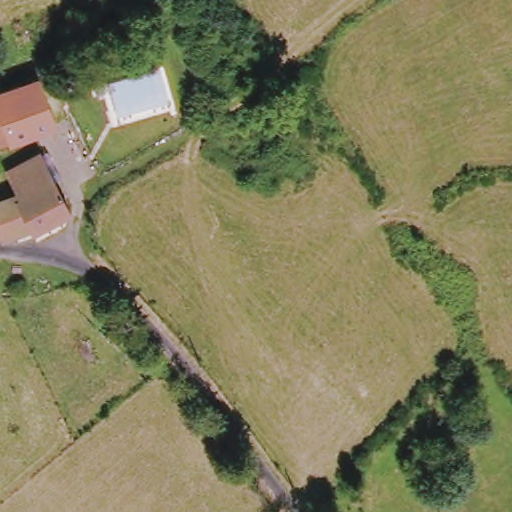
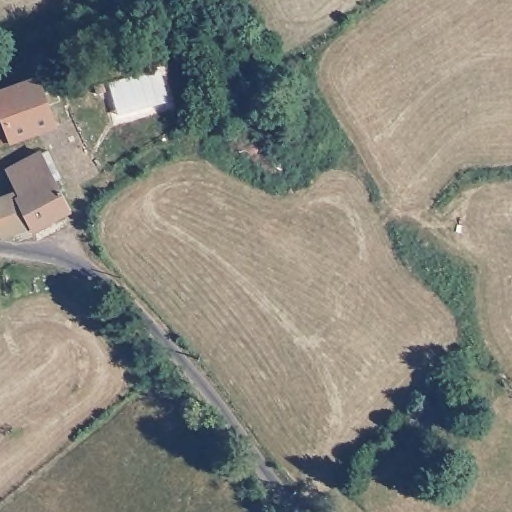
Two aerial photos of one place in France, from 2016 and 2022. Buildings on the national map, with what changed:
unchanged [(51,125),(9,140),(0,143),(0,91),(34,78),(51,125)]
unchanged [(24,226),(0,235),(0,198),(10,193),(0,169),(35,152),(64,210),(25,230),(24,226)]

